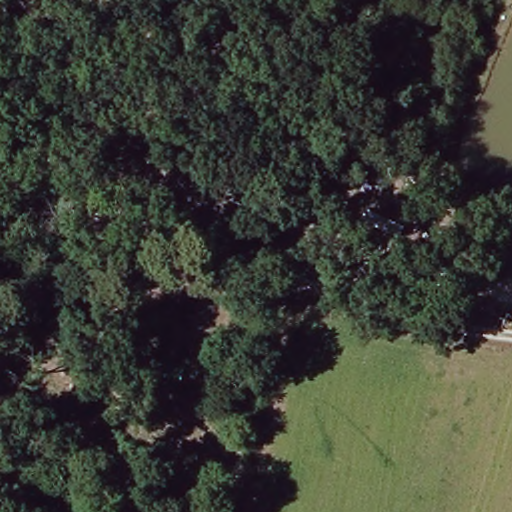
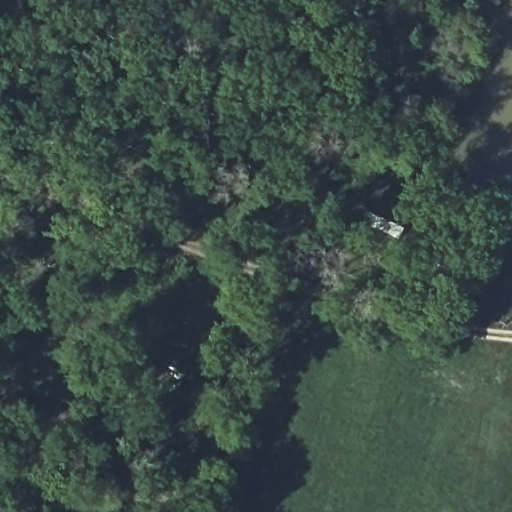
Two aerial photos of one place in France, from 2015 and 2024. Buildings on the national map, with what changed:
[]

